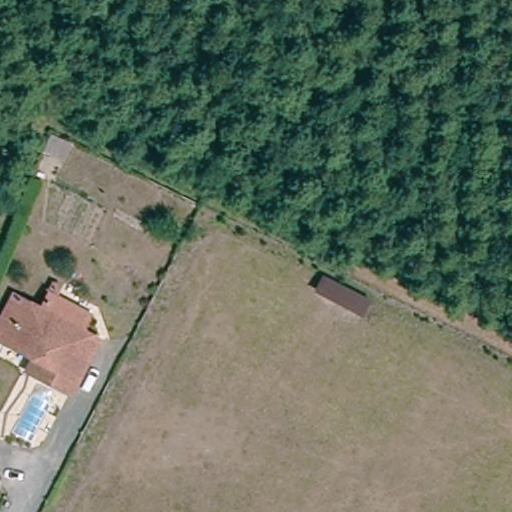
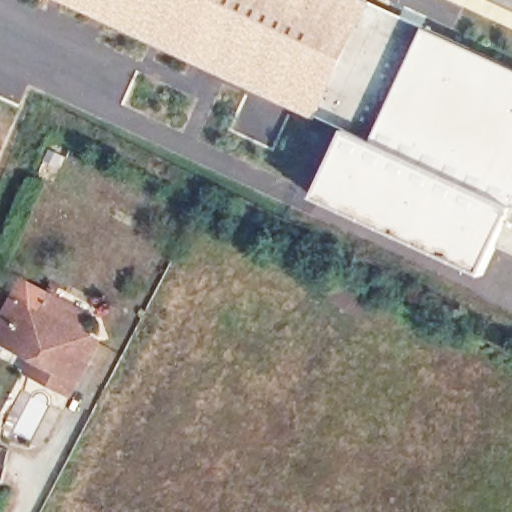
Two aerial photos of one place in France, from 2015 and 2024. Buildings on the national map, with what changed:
new [(347,130),(318,120),(56,0),(367,0),(372,3),(428,28),(512,66),(512,247),(497,239),(480,273),(315,197),(347,130)]
unchanged [(64,148),(56,169),(36,161),(45,141),(64,148)]
unchanged [(31,357),(20,351),(5,343),(0,340),(0,317),(10,297),(26,305),(96,342),(70,394),(25,369),(31,357)]

